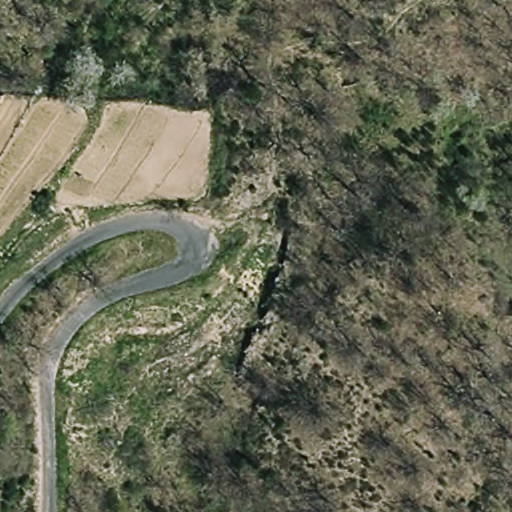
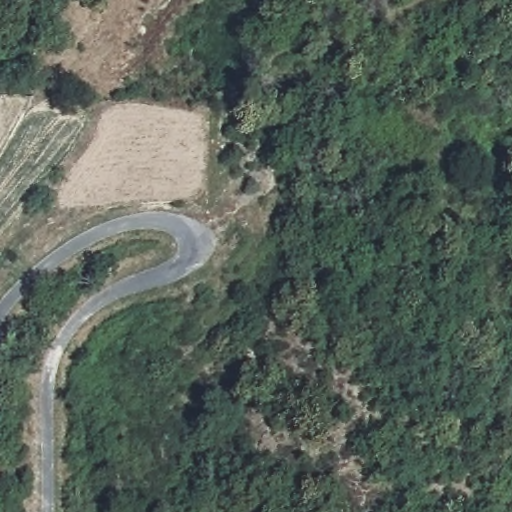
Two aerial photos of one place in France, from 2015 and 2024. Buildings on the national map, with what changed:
[]

